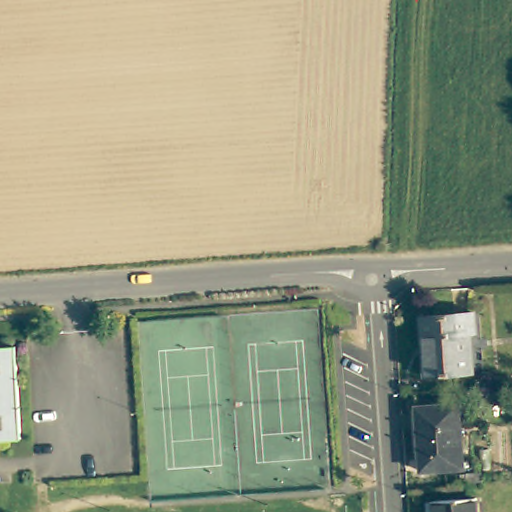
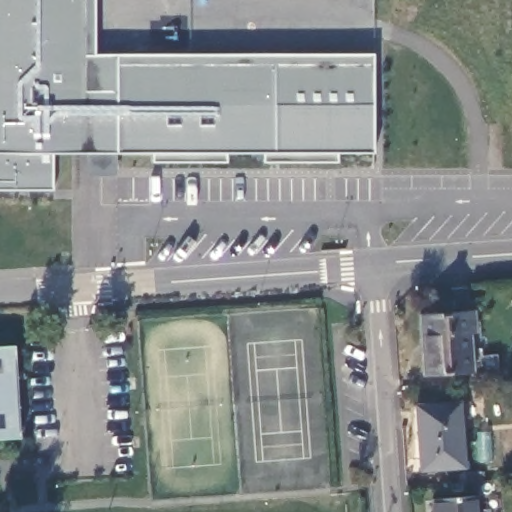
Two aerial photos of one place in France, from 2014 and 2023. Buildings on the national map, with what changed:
new [(376,155),(340,155),(339,162),(265,163),(265,154),(229,154),(229,162),(154,162),(153,155),(118,155),(118,176),(86,176),(87,154),(55,154),(55,190),(0,189),(0,0),(96,0),(97,54),(374,54),(376,155)]
unchanged [(426,308),(481,304),(482,324),(477,325),(480,364),(430,368),(426,308)]
unchanged [(11,347),(16,440),(0,440),(0,348),(11,347)]
unchanged [(471,400),(476,465),(432,468),(428,403),(471,400)]
unchanged [(441,512),(440,498),(449,497),(492,494),(493,512),(441,512)]

